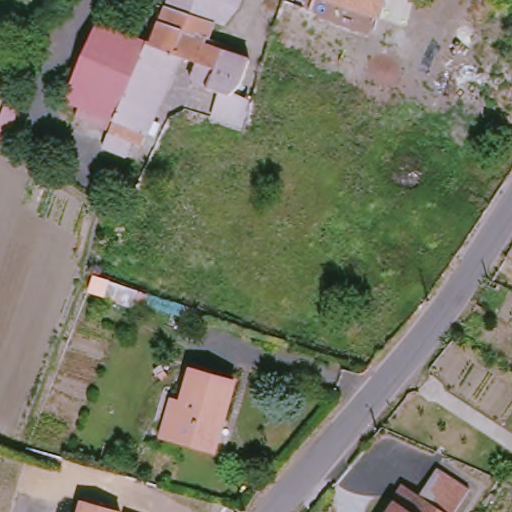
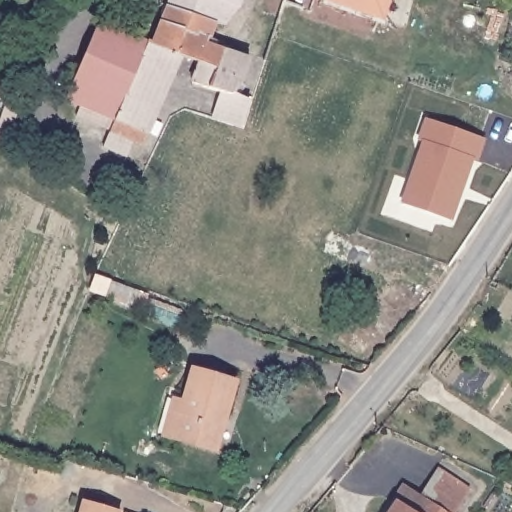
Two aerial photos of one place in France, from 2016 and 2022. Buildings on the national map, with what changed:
unchanged [(230,23),(228,24),(227,24),(219,23),(172,7),(175,0),(222,0),(242,8),(230,23)]
unchanged [(242,8),(222,0),(246,0),(242,8)]
unchanged [(310,14),(315,0),(325,5),(326,0),(390,0),(381,24),(330,6),(325,19),(310,14)]
unchanged [(247,127),(218,119),(225,92),(212,89),(197,82),(204,62),(187,57),(157,44),(165,21),(172,7),(219,23),(214,37),(212,44),(230,50),(255,59),(247,85),(239,94),(255,101),(247,127)]
unchanged [(102,25),(153,42),(136,82),(86,67),(102,25)]
unchanged [(115,130),(82,116),(85,105),(72,100),(86,67),(136,82),(153,42),(157,44),(187,57),(152,135),(148,144),(139,140),(132,156),(108,147),(115,130)]
new [(452,221),(400,203),(422,141),(417,140),(425,117),(485,140),(479,160),(473,159),(452,221)]
unchanged [(178,403),(188,406),(197,374),(240,387),(220,456),(178,443),(167,440),(178,403)]
unchanged [(411,488),(425,497),(443,470),(474,490),(459,512),(395,512),(401,503),(411,488)]
unchanged [(112,512),(86,512),(88,505),(112,512)]

